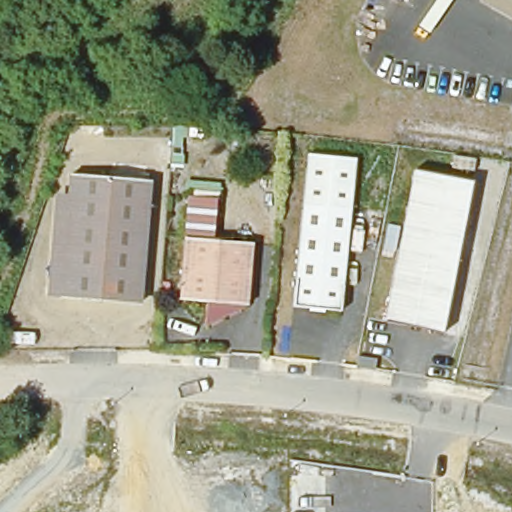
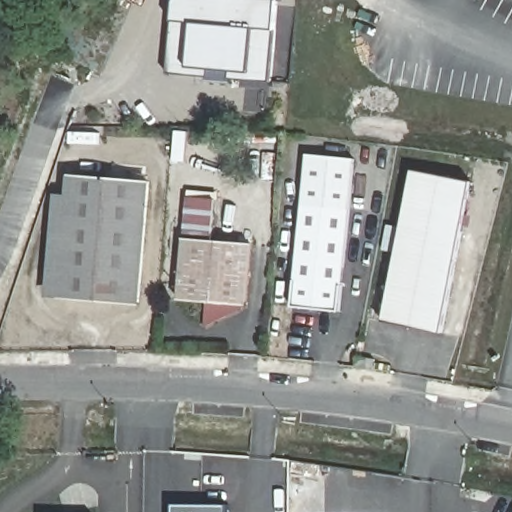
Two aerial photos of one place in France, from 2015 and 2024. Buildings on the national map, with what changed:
new [(166,73),(173,1),(173,0),(278,0),(271,82),(229,78),(209,77),(166,73)]
unchanged [(309,152),(356,158),(349,208),(335,310),(289,304),(303,202),(309,152)]
unchanged [(442,331),(384,320),(413,172),(470,183),(442,331)]
unchanged [(139,302),(57,296),(66,177),(149,184),(139,302)]
unchanged [(199,310),(200,298),(175,296),(184,194),(212,196),(208,236),(245,239),(239,301),(219,312),(198,322),(199,310)]
unchanged [(369,368),(355,366),(357,356),(376,359),(374,369),(369,368)]
new [(232,504),(232,512),(175,512),(175,503),(232,504)]

